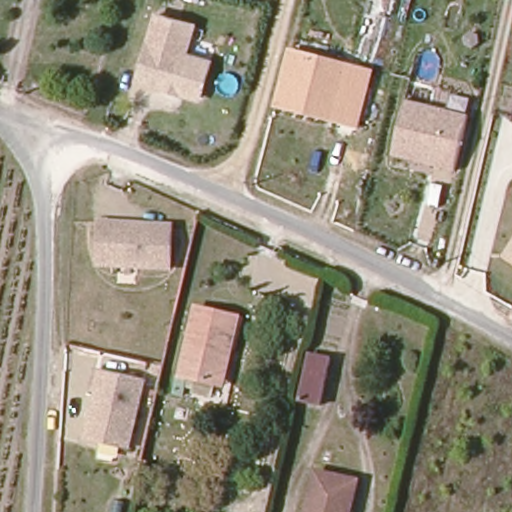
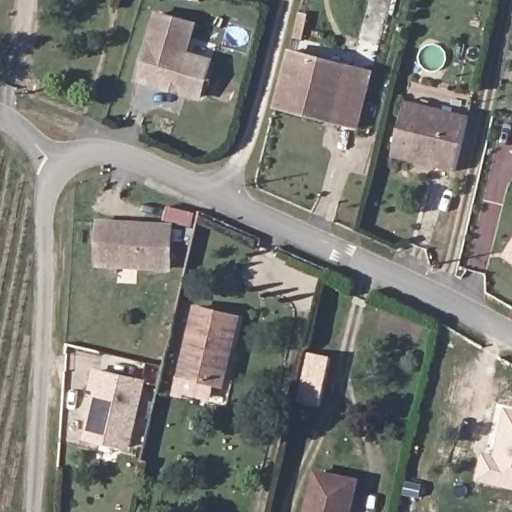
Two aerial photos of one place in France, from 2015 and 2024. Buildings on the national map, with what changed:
unchanged [(202,24),(193,52),(215,60),(206,101),(143,82),(159,12),(202,24)]
unchanged [(274,108),(290,49),(374,71),(359,129),(274,108)]
unchanged [(455,172),(392,157),(407,101),(468,116),(455,172)]
unchanged [(172,226),(170,267),(98,263),(100,222),(172,226)]
unchanged [(512,246),(512,261),(506,257),(512,246)]
unchanged [(214,381),(181,375),(197,307),(239,316),(231,348),(223,383),(214,381)]
unchanged [(326,410),(306,406),(316,358),(336,362),(326,410)]
unchanged [(127,449),(87,440),(98,391),(92,390),(96,373),(143,383),(127,449)]
new [(483,451),(496,453),(507,407),(512,408),(512,488),(477,481),(483,451)]
unchanged [(319,471),(357,480),(351,507),(349,512),(309,512),(319,471)]

